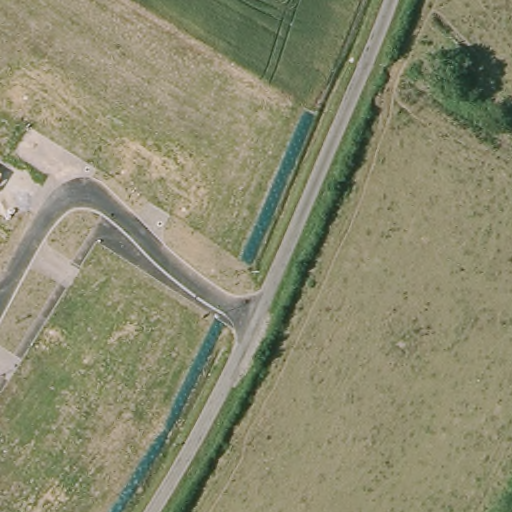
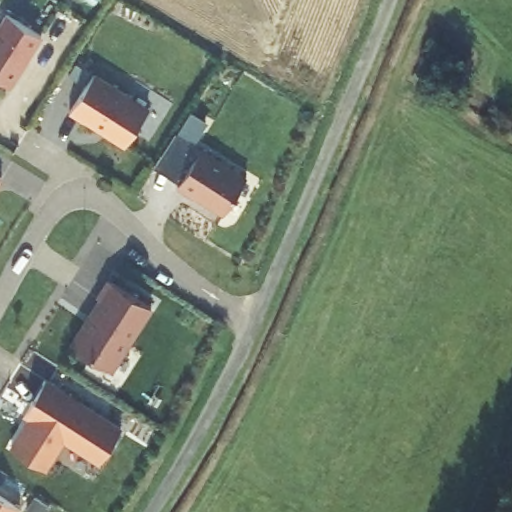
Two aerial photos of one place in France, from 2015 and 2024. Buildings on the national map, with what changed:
unchanged [(7,14),(41,36),(8,86),(0,81),(0,26),(7,14)]
new [(125,146),(85,120),(84,122),(69,112),(93,75),(148,109),(125,146)]
new [(193,143),(178,133),(190,113),(207,122),(193,143)]
new [(223,214),(195,196),(195,197),(177,187),(200,149),(246,177),(223,214)]
new [(150,306),(132,343),(144,349),(120,387),(85,369),(95,356),(75,342),(110,282),(150,306)]
new [(23,415),(30,403),(45,381),(121,429),(100,462),(63,440),(45,469),(11,448),(30,419),(23,415)]
new [(20,507),(17,512),(0,512),(0,497),(20,507)]

